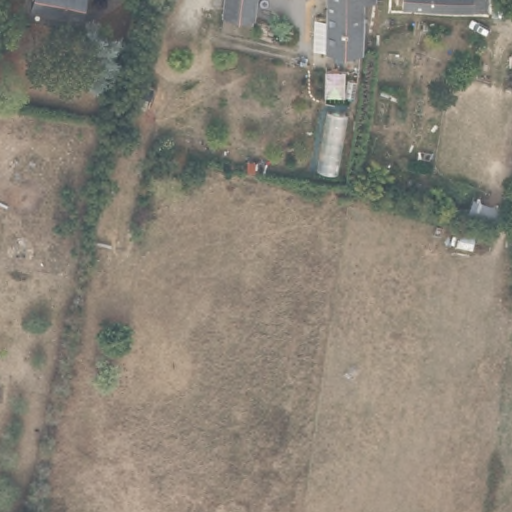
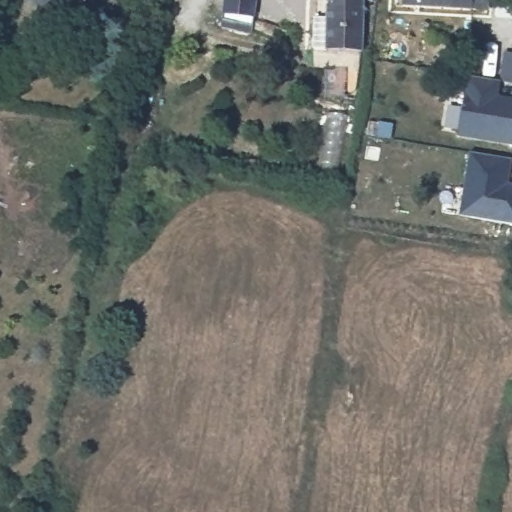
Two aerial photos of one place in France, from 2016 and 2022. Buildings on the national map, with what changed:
unchanged [(80,21),(63,17),(64,14),(29,5),(30,0),(85,0),(80,21)]
unchanged [(248,17),(220,14),(221,0),(250,0),(248,17)]
unchanged [(360,50),(325,48),(326,36),(322,32),(325,0),(364,0),(360,50)]
unchanged [(483,12),(396,8),(397,0),(483,0),(483,12)]
new [(467,76),(499,81),(496,101),(512,103),(512,144),(457,135),(467,76)]
new [(470,153),(511,160),(508,177),(504,177),(502,184),(512,185),(512,223),(460,215),(470,153)]

